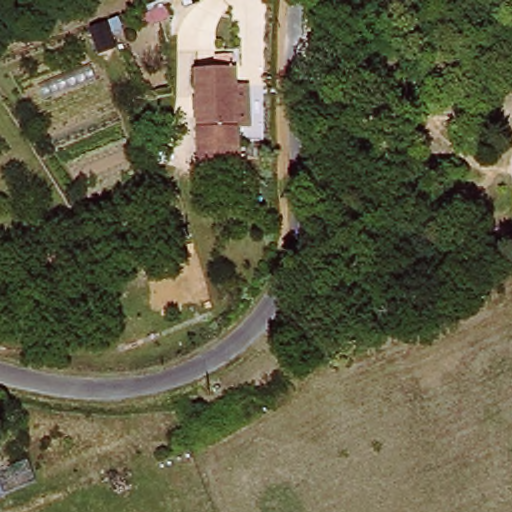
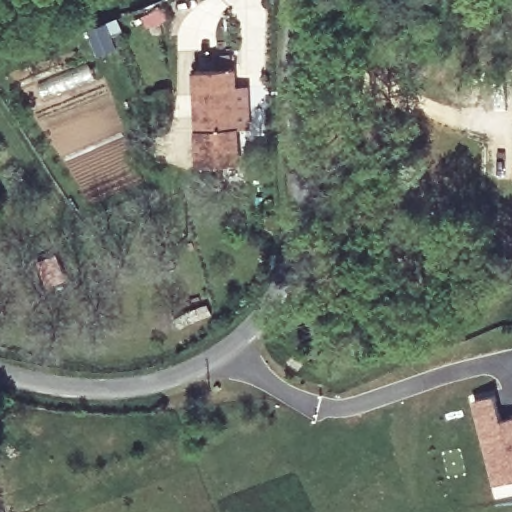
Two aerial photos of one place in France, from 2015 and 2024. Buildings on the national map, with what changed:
unchanged [(197,160),(180,66),(222,59),(223,70),(237,67),(244,115),(230,117),(233,139),(235,152),(227,154),(197,160)]
new [(503,418),(512,416),(512,483),(493,487),(474,398),(495,393),(503,418)]

